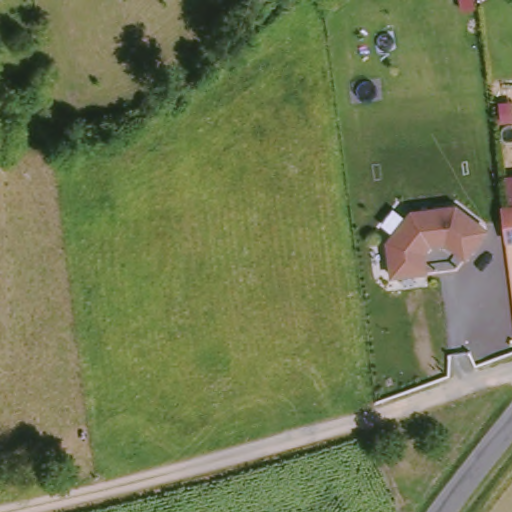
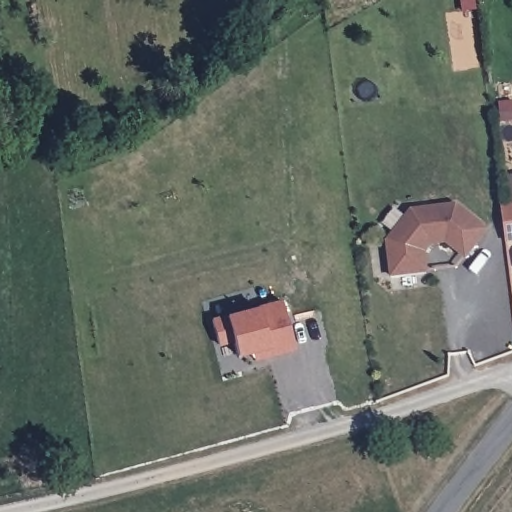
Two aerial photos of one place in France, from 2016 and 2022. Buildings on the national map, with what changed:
unchanged [(487,234),(464,260),(445,244),(429,244),(421,251),(422,265),(422,271),(387,272),(386,238),(413,210),(457,208),(487,234)]
unchanged [(512,209),(512,242),(505,242),(502,222),(501,210),(512,209)]
new [(281,300),(295,350),(254,361),(251,352),(237,356),(234,340),(218,344),(212,316),(281,300)]

